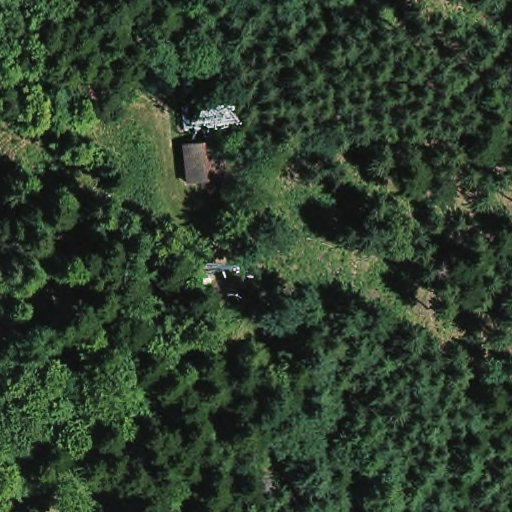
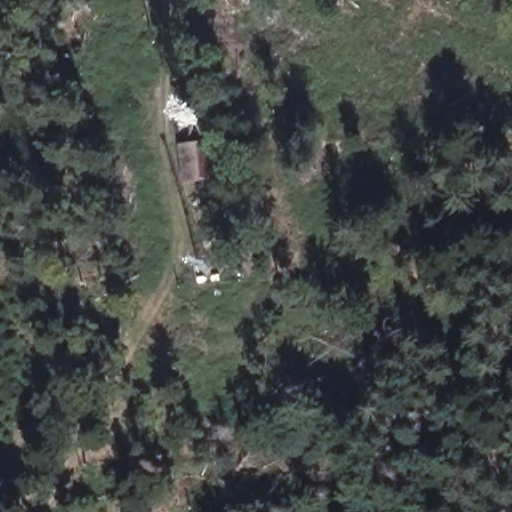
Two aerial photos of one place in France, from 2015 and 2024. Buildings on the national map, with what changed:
unchanged [(185,186),(185,174),(182,152),(196,150),(199,172),(202,171),(213,170),(213,182),(185,186)]

